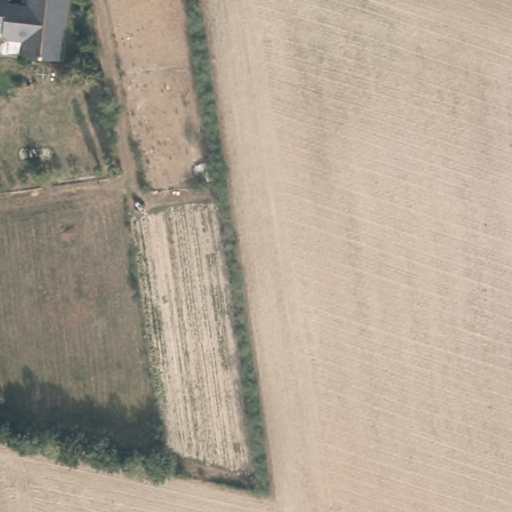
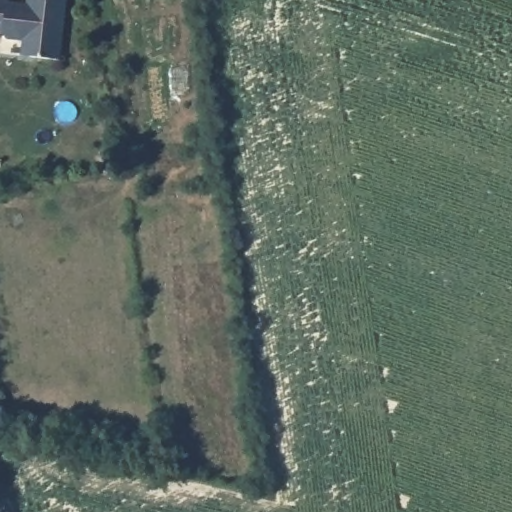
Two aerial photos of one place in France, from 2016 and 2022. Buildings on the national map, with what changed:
unchanged [(4,41),(2,33),(0,33),(0,1),(5,1),(16,11),(26,12),(27,0),(66,0),(56,64),(31,61),(19,60),(20,43),(4,41)]

